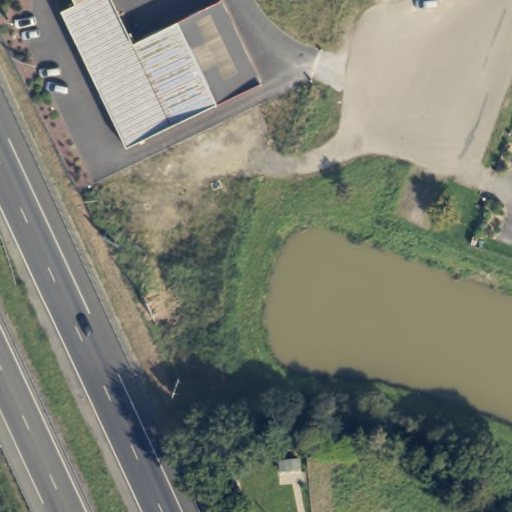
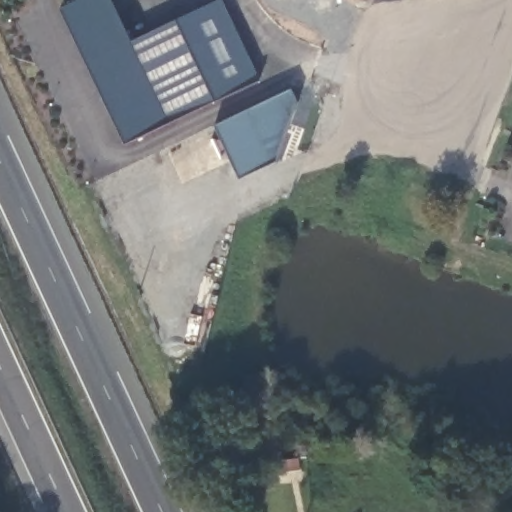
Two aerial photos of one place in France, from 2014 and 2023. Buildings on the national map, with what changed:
unchanged [(60,9),(74,2),(73,0),(114,0),(133,39),(221,1),(258,73),(260,79),(256,82),(126,144),(60,9)]
new [(276,162),(239,181),(213,126),(290,90),(297,104),(276,162)]

